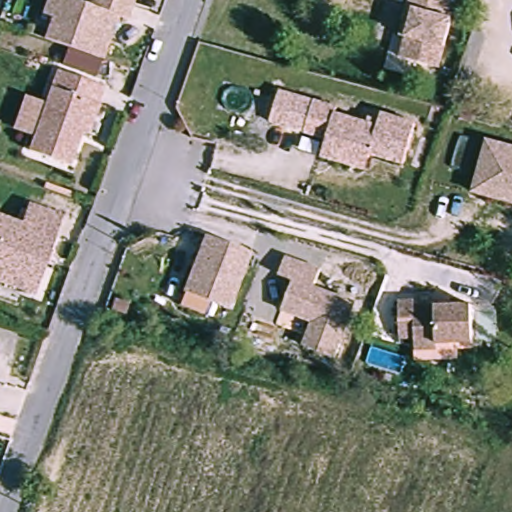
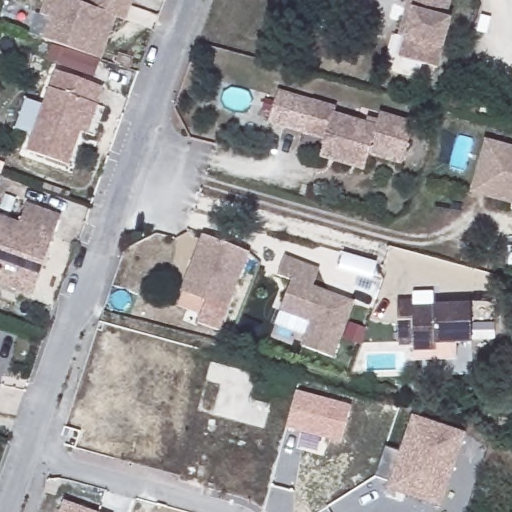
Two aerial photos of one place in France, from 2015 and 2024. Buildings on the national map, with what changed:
unchanged [(38,17),(45,0),(58,0),(83,8),(85,0),(130,0),(122,24),(114,21),(100,59),(39,37),(45,20),(38,17)]
unchanged [(451,21),(437,70),(400,59),(406,38),(400,36),(407,10),(410,0),(437,0),(451,4),(446,20),(451,21)]
unchanged [(94,60),(89,74),(66,65),(71,51),(94,60)]
unchanged [(94,136),(79,131),(68,165),(27,151),(32,136),(13,130),(24,98),(43,104),(54,71),(101,87),(95,105),(103,108),(94,136)]
unchanged [(324,160),(328,148),(329,142),(273,125),(282,93),(340,110),(338,117),(380,129),(384,116),(419,126),(407,167),(373,157),(372,161),(369,173),(324,160)]
unchanged [(503,202),(477,195),(491,143),(512,149),(512,205),(503,202)]
unchanged [(0,288),(0,223),(18,229),(26,210),(58,222),(44,260),(37,279),(30,298),(0,288)]
unchanged [(196,254),(203,237),(249,254),(227,311),(181,294),(190,269),(196,254)]
unchanged [(284,305),(293,283),(279,277),(285,259),(320,272),(314,289),(355,304),(334,359),(304,348),(313,324),(293,316),(282,312),(284,305)]
unchanged [(414,302),(414,308),(471,306),(472,343),(436,344),(437,350),(415,351),(414,339),(399,339),(398,302),(414,302)]
new [(352,406),(343,444),(287,428),(296,391),(352,406)]
new [(467,433),(441,507),(386,489),(388,482),(377,477),(387,448),(400,453),(413,415),(467,433)]
new [(65,501),(94,512),(60,512),(65,501)]

